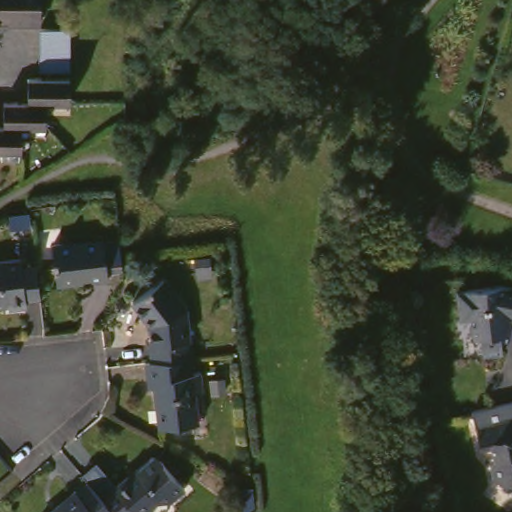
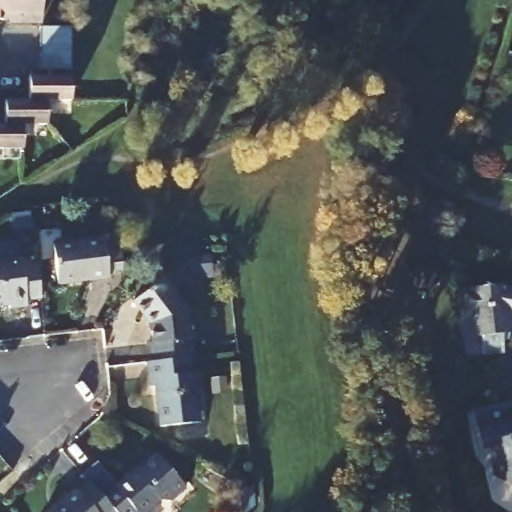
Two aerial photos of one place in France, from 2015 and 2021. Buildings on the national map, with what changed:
unchanged [(50,18),(0,19),(0,0),(50,0),(50,18)]
unchanged [(47,68),(47,57),(47,26),(79,26),(79,58),(79,69),(47,68)]
unchanged [(12,158),(11,147),(7,147),(0,135),(0,121),(15,121),(14,100),(39,99),(38,76),(79,75),(78,99),(56,100),(56,122),(33,123),(33,147),(31,147),(32,158),(12,158)]
unchanged [(7,147),(0,147),(0,135),(7,147)]
unchanged [(107,239),(107,242),(120,241),(121,252),(123,270),(108,271),(109,278),(59,282),(57,244),(107,239)]
unchanged [(53,291),(38,293),(38,299),(21,301),(20,295),(0,297),(0,253),(33,250),(34,260),(49,257),(53,291)]
unchanged [(423,250),(425,265),(407,267),(406,252),(423,250)]
unchanged [(160,337),(162,337),(159,317),(144,292),(176,270),(197,302),(202,353),(162,358),(160,337)]
unchanged [(512,281),(512,328),(505,328),(508,350),(488,352),(485,332),(478,334),(475,313),(466,315),(462,285),(505,280),(512,281)]
unchanged [(202,353),(203,370),(212,368),(213,390),(205,391),(207,421),(167,424),(164,384),(158,385),(156,358),(162,358),(202,353)]
unchanged [(512,409),(512,490),(504,486),(502,473),(508,464),(506,452),(497,455),(491,428),(489,415),(512,409)]
unchanged [(141,470),(164,450),(174,455),(196,481),(181,494),(171,493),(152,509),(155,512),(132,512),(127,507),(122,501),(121,500),(113,490),(139,467),(141,470)]
unchanged [(88,486),(100,475),(113,490),(121,500),(122,501),(127,507),(122,512),(53,512),(85,483),(88,486)]

